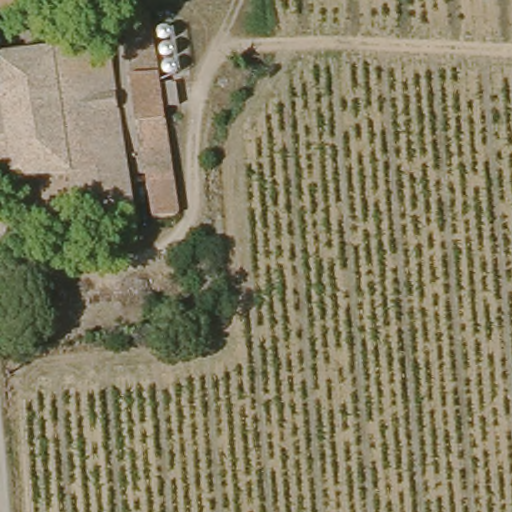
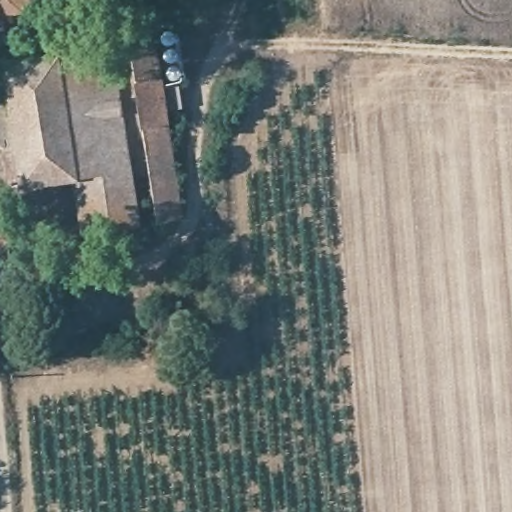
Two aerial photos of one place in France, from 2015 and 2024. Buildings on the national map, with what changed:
unchanged [(23,6),(17,7),(17,17),(0,20),(0,0),(22,0),(23,6)]
unchanged [(129,28),(135,21),(153,15),(180,218),(156,221),(129,28)]
unchanged [(0,104),(25,100),(18,54),(128,38),(152,234),(135,237),(132,225),(95,231),(86,173),(0,186),(0,104)]

